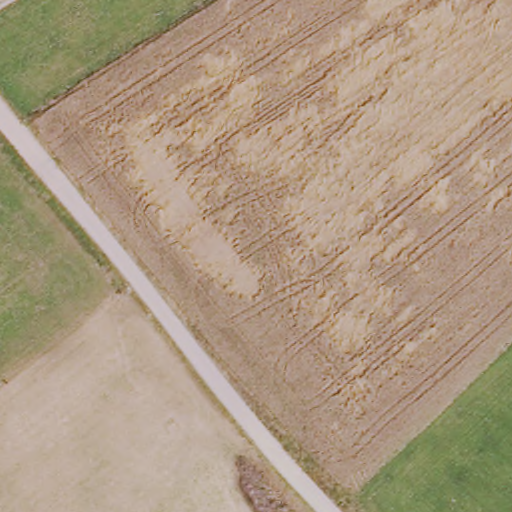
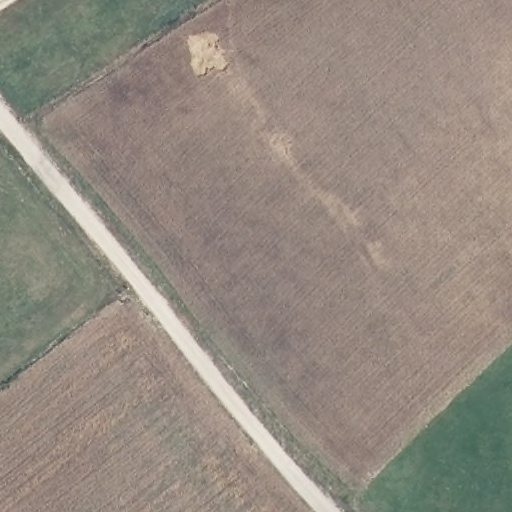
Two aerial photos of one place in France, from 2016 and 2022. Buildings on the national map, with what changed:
[]

